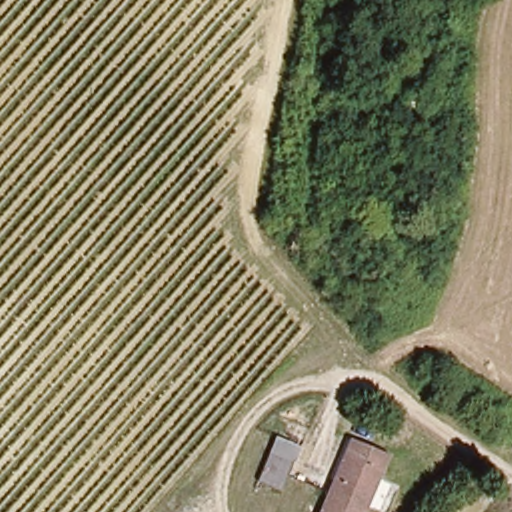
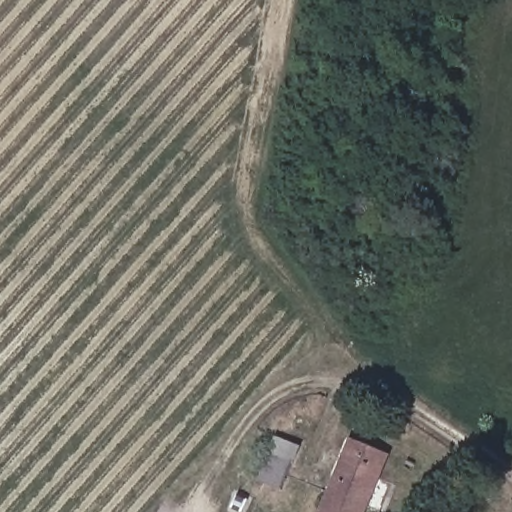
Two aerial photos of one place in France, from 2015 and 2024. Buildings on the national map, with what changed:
unchanged [(298,441),(280,487),(253,476),(274,431),(298,441)]
unchanged [(358,512),(312,512),(343,435),(385,450),(358,512)]

